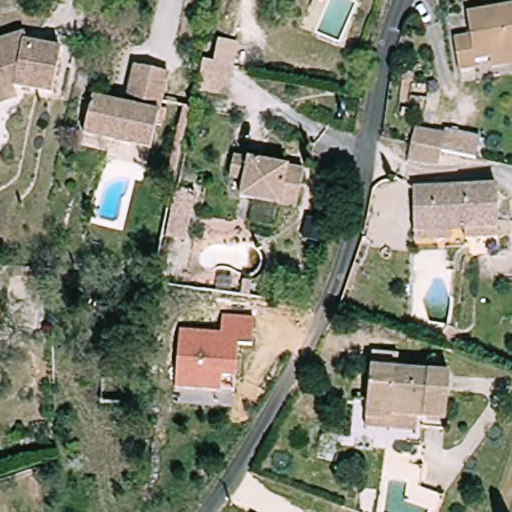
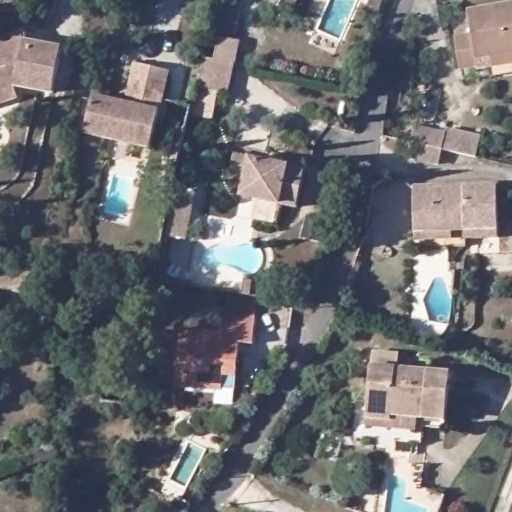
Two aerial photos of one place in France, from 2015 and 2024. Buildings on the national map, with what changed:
unchanged [(492,62),(492,52),(476,55),(477,66),(455,69),(452,35),(473,30),(472,7),(512,0),(512,59),(492,62)]
unchanged [(0,43),(21,35),(24,41),(62,47),(52,89),(15,84),(6,87),(10,98),(0,102),(0,43)]
unchanged [(218,61),(223,38),(243,40),(238,63),(232,95),(201,92),(208,60),(217,61),(218,61)]
unchanged [(94,102),(128,107),(137,68),(171,73),(156,148),(86,138),(94,102)]
unchanged [(440,164),(409,163),(412,145),(414,128),(446,129),(443,147),(440,164)]
unchanged [(310,169),(301,206),(245,197),(249,180),(234,178),(239,158),(310,169)]
unchanged [(415,192),(500,178),(504,218),(418,232),(415,192)]
unchanged [(504,218),(505,232),(472,236),(472,243),(419,251),(418,232),(504,218)]
unchanged [(0,301),(0,297),(2,297),(0,301)]
unchanged [(227,385),(179,384),(183,329),(225,330),(226,313),(260,313),(258,339),(244,339),(242,370),(241,385),(227,385)]
unchanged [(454,368),(447,422),(420,422),(420,408),(398,408),(398,417),(374,417),(378,368),(454,368)]

